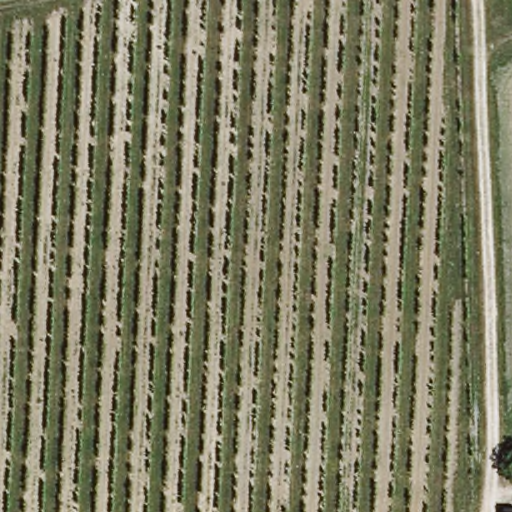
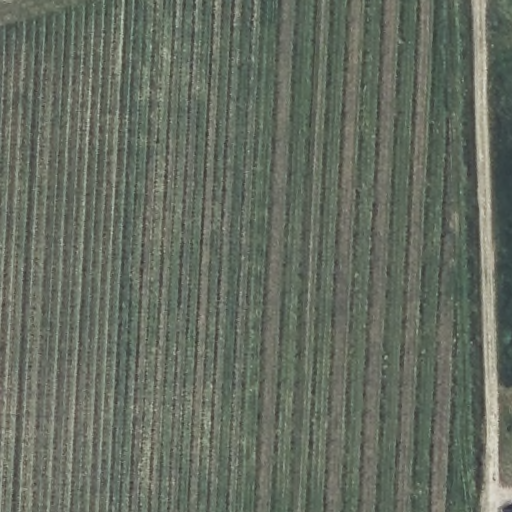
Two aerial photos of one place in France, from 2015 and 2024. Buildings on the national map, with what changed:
unchanged [(512,512),(502,512),(502,509),(512,509),(512,512)]

